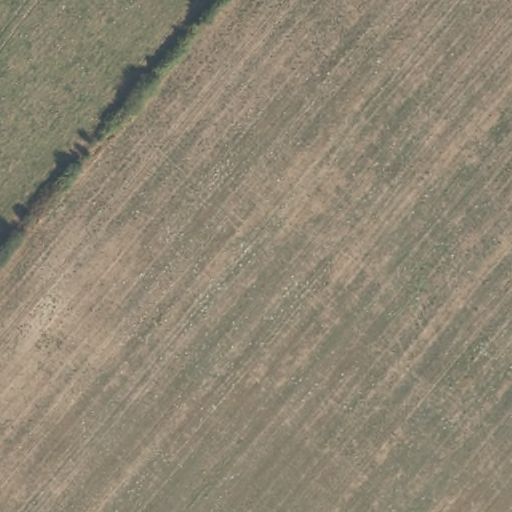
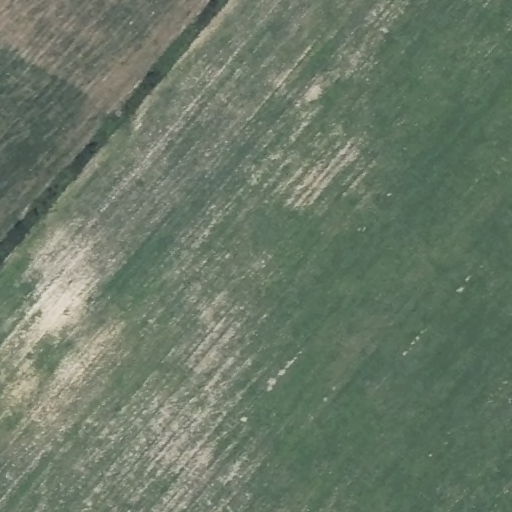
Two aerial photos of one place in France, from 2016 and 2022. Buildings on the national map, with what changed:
[]

